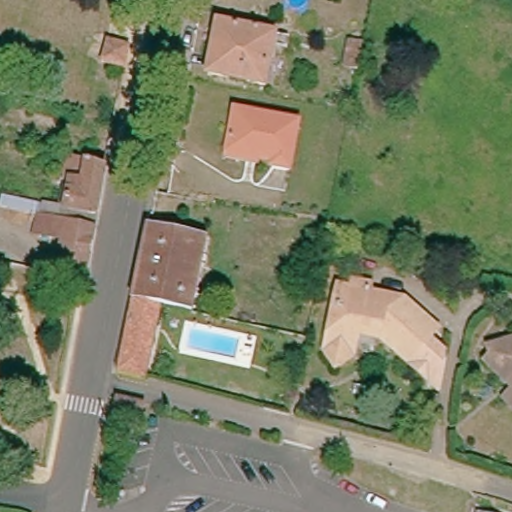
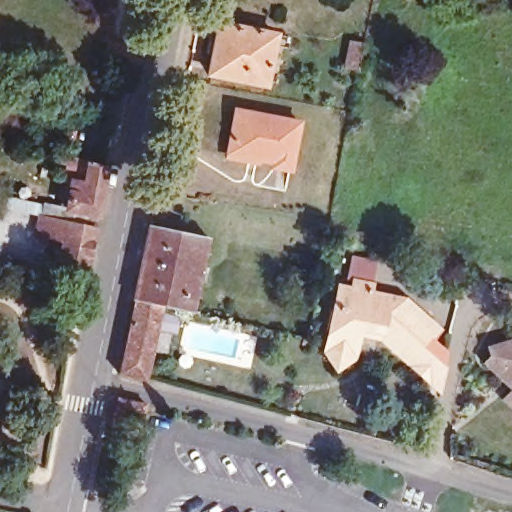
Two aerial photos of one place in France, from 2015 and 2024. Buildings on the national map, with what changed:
unchanged [(277,32),(267,83),(213,73),(222,22),(277,32)]
unchanged [(371,71),(357,68),(363,41),(377,43),(371,71)]
unchanged [(135,73),(112,67),(117,45),(128,48),(139,50),(135,73)]
unchanged [(293,121),(286,168),(267,165),(268,157),(227,150),(233,111),(293,121)]
unchanged [(68,215),(69,209),(73,187),(68,186),(73,160),(107,169),(97,221),(68,215)]
unchanged [(68,215),(97,221),(95,229),(43,217),(6,208),(9,196),(69,209),(68,215)]
unchanged [(86,269),(59,264),(63,242),(39,237),(43,217),(95,229),(86,269)]
unchanged [(180,244),(172,243),(157,307),(132,302),(147,226),(182,233),(180,244)]
unchanged [(172,243),(180,244),(182,233),(209,238),(192,314),(157,307),(172,243)]
unchanged [(354,290),(368,293),(367,300),(406,307),(437,330),(428,341),(451,358),(442,395),(373,343),(374,336),(358,334),(353,362),(335,371),(321,357),(331,313),(335,294),(346,296),(353,297),(354,290)]
unchanged [(141,380),(116,374),(132,302),(157,307),(141,380)]
unchanged [(487,368),(493,346),(512,340),(512,382),(497,366),(487,368)]
unchanged [(507,388),(512,383),(512,414),(497,397),(507,388)]
unchanged [(116,421),(121,399),(150,405),(143,428),(125,423),(116,421)]

